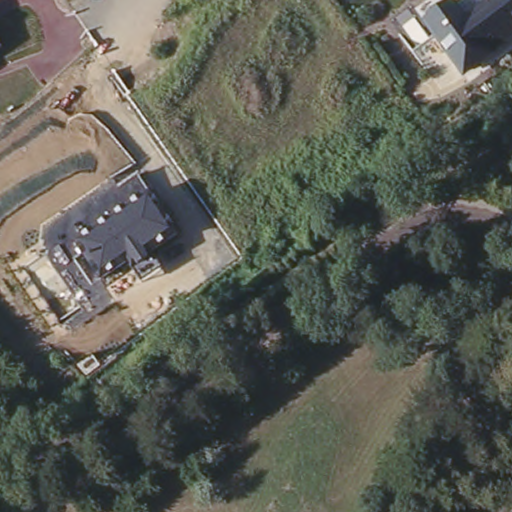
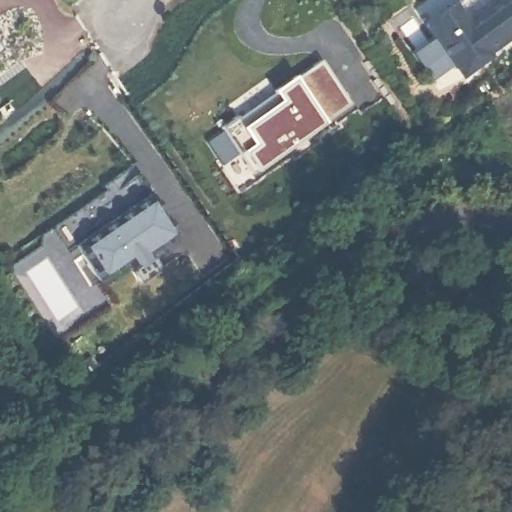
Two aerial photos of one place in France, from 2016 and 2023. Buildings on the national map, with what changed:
unchanged [(422,27),(452,1),(465,17),(493,0),(512,0),(512,42),(461,79),(422,27)]
unchanged [(2,50),(0,51),(0,47),(2,50)]
new [(236,138),(285,103),(279,92),(323,61),(358,105),(267,170),(236,138)]
unchanged [(177,231),(150,250),(163,270),(141,284),(126,263),(98,280),(75,242),(149,193),(177,231)]

